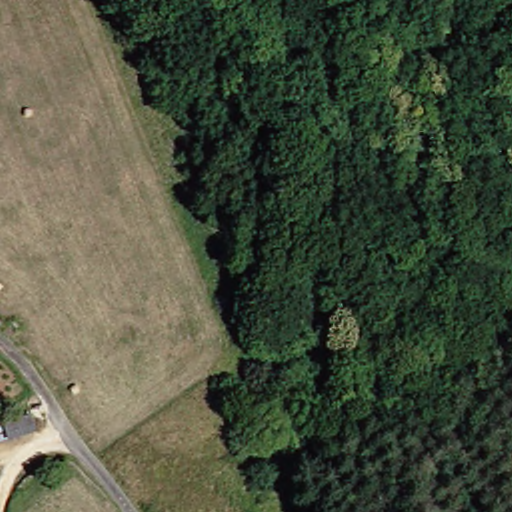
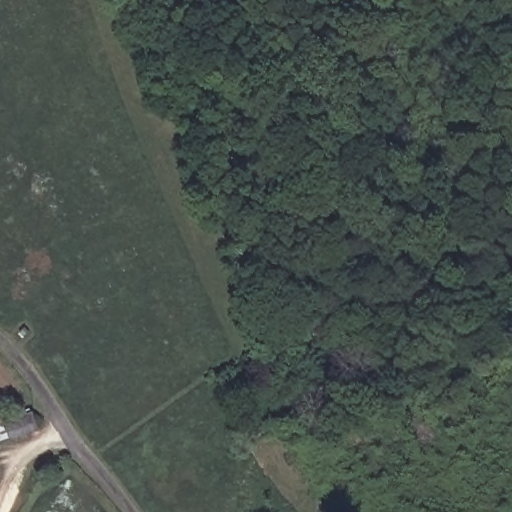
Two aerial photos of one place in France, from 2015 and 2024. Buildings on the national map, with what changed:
unchanged [(0,442),(0,420),(26,415),(31,433),(0,442)]

